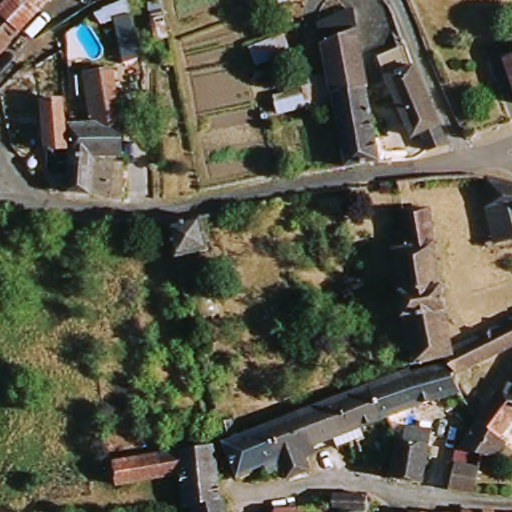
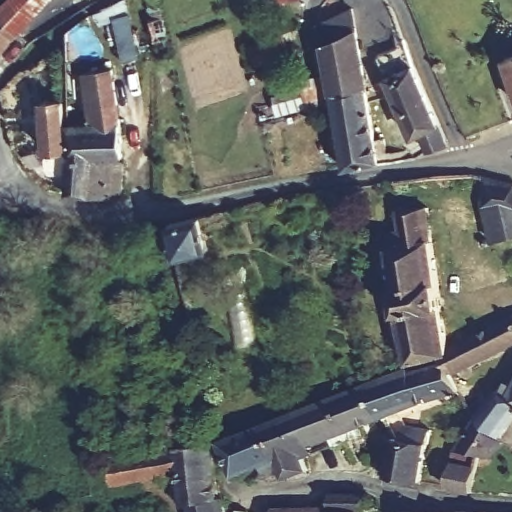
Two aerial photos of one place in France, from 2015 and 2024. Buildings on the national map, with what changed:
unchanged [(0,58),(0,13),(3,10),(13,0),(52,0),(0,58)]
unchanged [(90,11),(81,0),(106,0),(90,11)]
unchanged [(284,2),(283,0),(293,0),(284,2)]
unchanged [(124,2),(138,56),(122,62),(113,26),(100,29),(95,18),(124,2)]
unchanged [(333,79),(323,24),(357,9),(371,88),(336,93),(333,79)]
unchanged [(432,150),(424,134),(418,137),(408,119),(398,96),(381,56),(409,45),(418,66),(443,125),(452,145),(432,150)]
unchanged [(512,57),(512,82),(504,60),(512,57)]
unchanged [(127,156),(103,156),(103,161),(116,161),(127,162),(125,198),(114,197),(95,195),(96,156),(73,156),(73,150),(75,147),(73,145),(73,127),(96,124),(88,73),(116,69),(124,122),(127,156)]
unchanged [(333,79),(336,93),(338,103),(284,116),(278,95),(333,79)]
unchanged [(384,160),(349,167),(338,103),(336,93),(371,88),(384,160)]
unchanged [(96,156),(95,195),(72,193),(73,172),(51,171),(51,149),(48,102),(68,100),(71,147),(73,150),(73,156),(96,156)]
unchanged [(489,209),(493,177),(512,182),(512,212),(492,210),(489,209)]
unchanged [(419,363),(408,317),(395,234),(409,231),(405,210),(434,208),(438,242),(455,350),(456,353),(419,363)]
unchanged [(491,244),(492,210),(512,212),(512,239),(499,242),(491,244)]
unchanged [(208,250),(176,257),(168,225),(199,217),(208,250)]
unchanged [(462,371),(456,353),(455,350),(512,321),(512,348),(463,373),(462,371)]
unchanged [(391,417),(386,419),(373,386),(414,369),(416,373),(451,363),(464,391),(391,417)]
unchanged [(476,421),(478,419),(498,391),(504,394),(509,383),(512,385),(512,422),(499,438),(507,443),(493,458),(483,455),(459,450),(476,421)]
unchanged [(364,427),(368,437),(341,447),(339,438),(307,450),(313,470),(291,478),(284,460),(270,425),(373,386),(386,419),(364,427)]
unchanged [(224,437),(221,423),(236,420),(239,433),(224,437)]
unchanged [(241,477),(226,442),(270,425),(284,460),(241,477)]
unchanged [(389,478),(396,438),(398,425),(431,430),(428,444),(421,483),(389,478)]
unchanged [(196,512),(195,506),(189,508),(186,472),(120,485),(116,462),(218,444),(224,500),(227,498),(230,512),(196,512)]
unchanged [(474,492),(449,488),(454,462),(479,470),(474,492)]
unchanged [(336,508),(337,495),(371,495),(371,512),(338,512),(338,508),(336,508)]
unchanged [(336,508),(338,508),(338,512),(278,512),(279,510),(336,508)]
unchanged [(479,512),(466,512),(467,511),(479,512)]

